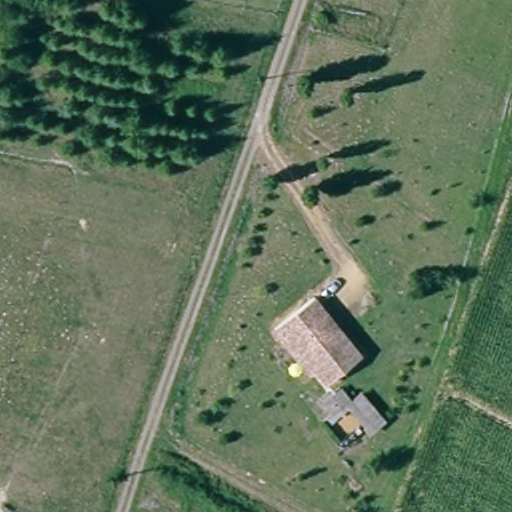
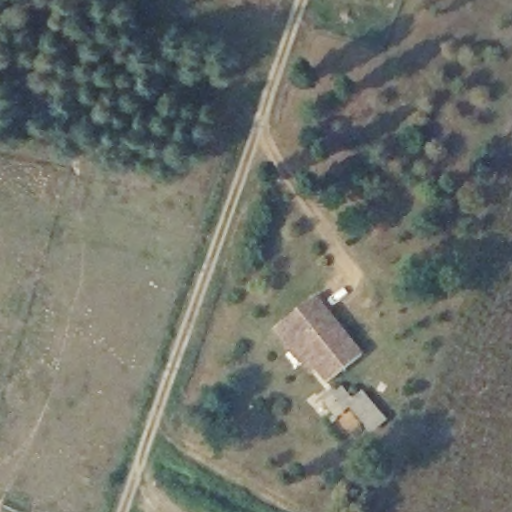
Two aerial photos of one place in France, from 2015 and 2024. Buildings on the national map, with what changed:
unchanged [(312,294),(359,354),(323,385),(315,371),(306,376),(270,331),(312,294)]
unchanged [(385,421),(370,435),(350,410),(332,423),(318,404),(340,387),(351,401),(361,391),(385,421)]

